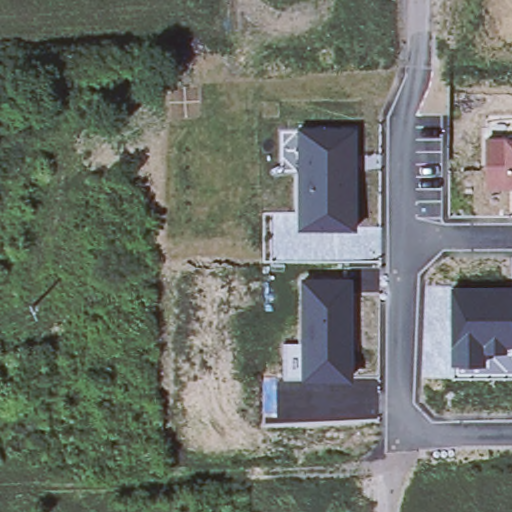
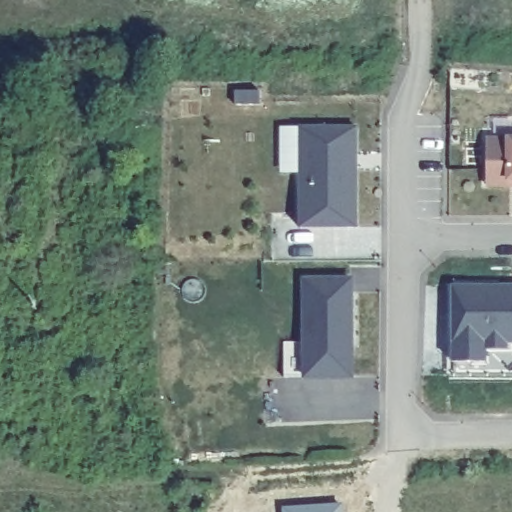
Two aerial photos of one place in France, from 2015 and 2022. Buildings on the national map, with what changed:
unchanged [(358,228),(299,228),(298,127),(355,125),(358,228)]
unchanged [(484,190),(484,139),(512,139),(512,190),(484,190)]
unchanged [(350,377),(286,377),(287,343),(306,343),(305,283),(350,281),(350,377)]
unchanged [(452,285),(512,286),(512,345),(506,345),(506,351),(484,352),(484,363),(450,363),(452,285)]
new [(341,505),(342,512),(283,512),(283,507),(341,505)]

